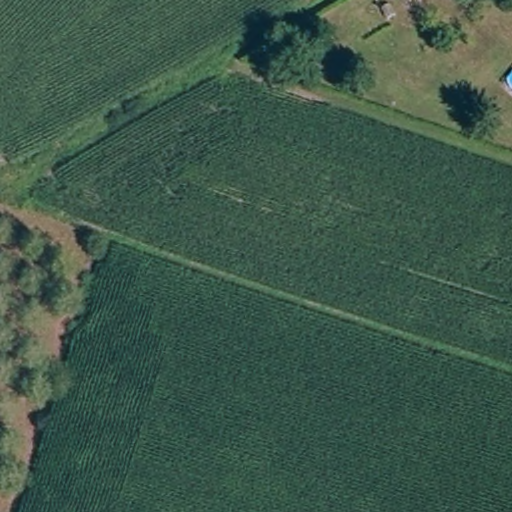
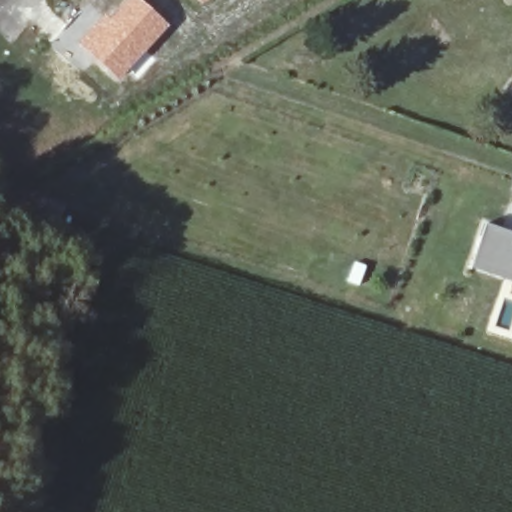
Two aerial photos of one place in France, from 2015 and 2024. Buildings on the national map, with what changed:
new [(104,15),(110,20),(128,0),(140,0),(169,26),(119,82),(78,45),(104,15)]
new [(202,1),(201,0),(204,0),(202,1)]
new [(512,232),(512,284),(470,270),(485,224),(512,232)]

